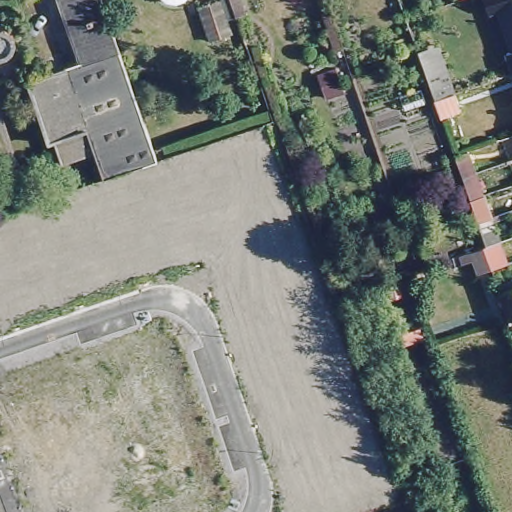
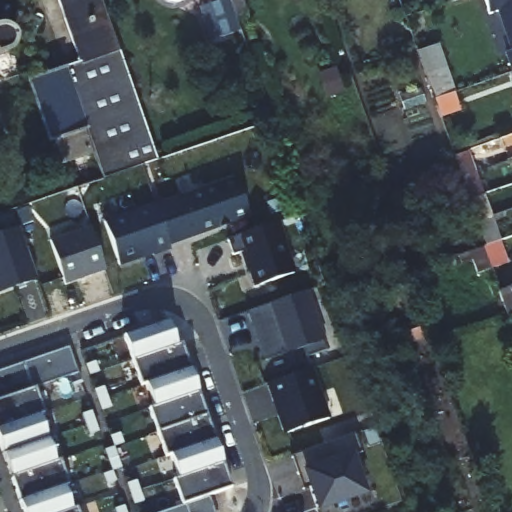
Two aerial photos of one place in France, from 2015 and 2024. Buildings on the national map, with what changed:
unchanged [(110,28),(117,50),(78,64),(55,0),(100,0),(103,9),(110,28)]
unchanged [(172,4),(167,4),(162,2),(160,0),(183,0),(180,2),(172,4)]
unchanged [(498,10),(490,13),(485,0),(512,0),(512,49),(498,10)]
unchanged [(217,6),(223,26),(209,30),(207,25),(201,26),(197,13),(217,6)]
unchanged [(6,34),(8,39),(9,44),(8,49),(5,53),(1,56),(0,57),(0,29),(3,31),(6,34)]
unchanged [(415,52),(440,43),(455,92),(460,106),(438,114),(434,100),(415,52)]
unchanged [(64,69),(78,64),(117,50),(157,161),(105,179),(87,129),(64,69)]
unchanged [(508,54),(512,52),(512,65),(508,54)]
unchanged [(47,142),(27,81),(64,69),(87,129),(47,142)]
unchanged [(485,247),(477,225),(469,202),(461,178),(453,156),(465,151),(472,174),(480,198),(482,198),(489,221),(494,219),(502,241),(510,262),(492,268),(485,247)]
new [(168,246),(155,205),(236,177),(248,217),(168,246)]
new [(155,205),(168,246),(170,250),(153,256),(152,254),(118,266),(103,223),(155,205)]
new [(274,227),(291,277),(253,290),(241,256),(231,259),(225,243),(274,227)]
new [(42,278),(0,292),(0,237),(25,228),(42,278)]
new [(65,286),(51,242),(91,228),(106,270),(65,286)]
unchanged [(512,282),(512,316),(510,317),(500,287),(512,282)]
new [(328,348),(305,357),(302,348),(265,361),(247,313),(308,292),(325,340),(328,348)]
new [(175,319),(237,490),(187,506),(129,334),(175,319)]
new [(0,447),(0,372),(69,349),(77,374),(35,388),(43,414),(39,416),(55,461),(60,460),(68,485),(63,486),(72,510),(77,508),(78,512),(23,512),(0,447)]
new [(285,435),(270,386),(315,370),(332,420),(285,435)]
new [(353,437),(360,457),(351,460),(362,496),(320,512),(315,512),(303,477),(297,479),(290,460),(353,437)]
new [(187,506),(210,498),(215,512),(167,512),(187,506)]

